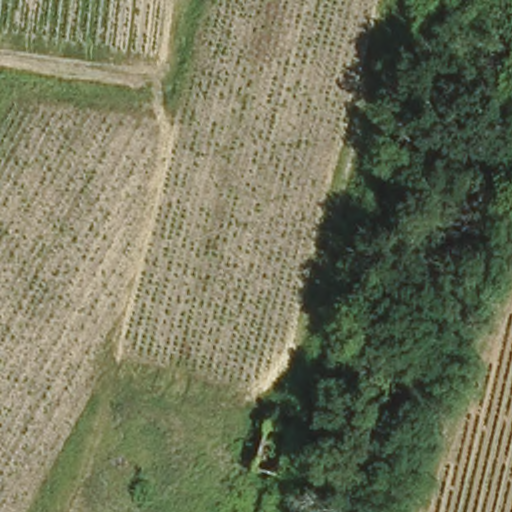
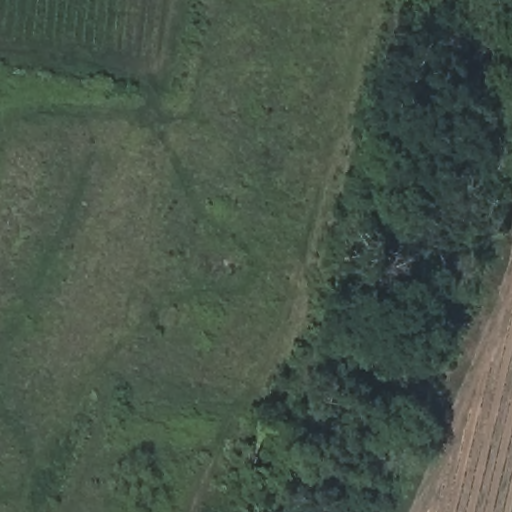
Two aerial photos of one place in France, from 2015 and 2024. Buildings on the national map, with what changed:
unchanged [(340,454),(312,442),(316,433),(333,392),(362,405),(340,454)]
unchanged [(278,418),(301,427),(282,471),(261,462),(278,418)]

